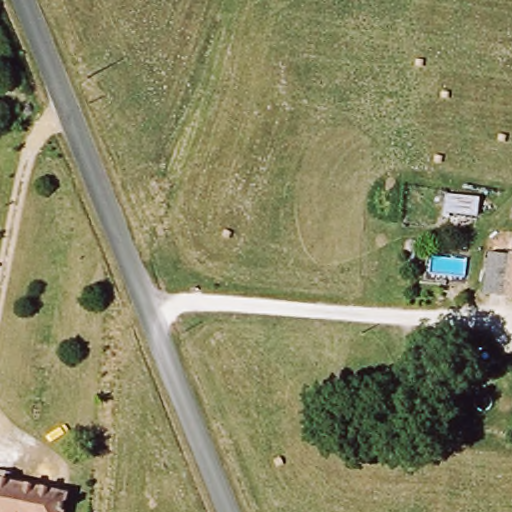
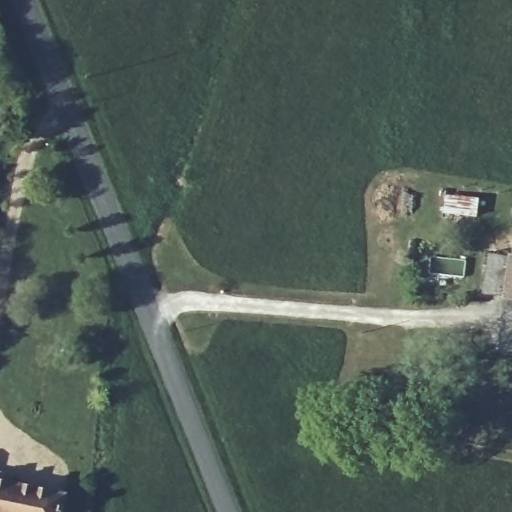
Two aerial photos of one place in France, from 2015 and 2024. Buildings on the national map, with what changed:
unchanged [(482,296),(491,250),(512,253),(512,251),(512,300),(482,296)]
unchanged [(0,507),(0,468),(72,481),(67,512),(11,512),(12,509),(0,507)]
unchanged [(11,512),(0,512),(0,507),(12,509),(11,512)]

